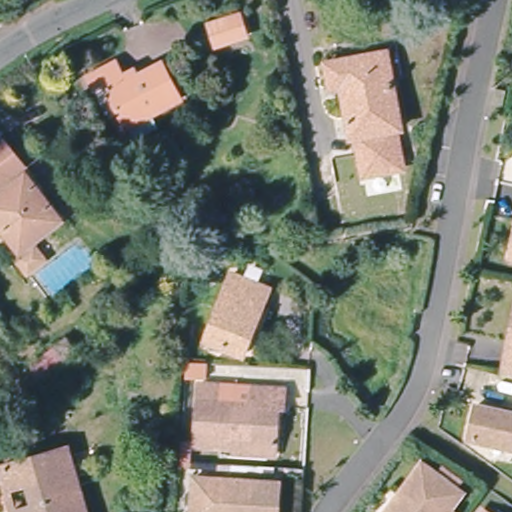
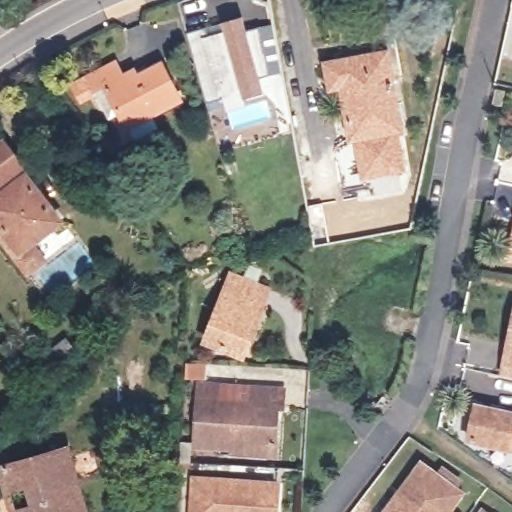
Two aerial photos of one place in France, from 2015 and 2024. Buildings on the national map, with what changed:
demolished [(209,23),(240,12),(247,34),(217,44),(209,23)]
new [(207,35),(225,33),(222,22),(243,17),(246,30),(259,28),(268,73),(260,75),(264,91),(244,96),(242,89),(207,100),(188,34),(205,29),(207,35)]
unchanged [(386,50),(389,65),(402,126),(399,127),(353,135),(342,84),(332,85),(327,61),(367,54),(386,50)]
unchanged [(94,90),(86,75),(116,59),(124,74),(136,68),(139,74),(163,61),(182,97),(129,125),(121,111),(111,117),(96,89),(94,90)]
unchanged [(399,127),(407,172),(361,181),(353,135),(399,127)]
unchanged [(23,160),(0,178),(0,138),(4,135),(23,160)]
unchanged [(14,248),(3,235),(10,229),(0,216),(0,189),(26,169),(60,214),(32,234),(47,254),(29,267),(14,248)]
unchanged [(509,256),(512,245),(512,256),(509,256)]
unchanged [(205,338),(231,272),(268,287),(242,353),(205,338)]
unchanged [(512,355),(512,372),(509,372),(511,358),(512,355)]
unchanged [(236,448),(236,441),(200,439),(202,378),(222,379),(222,396),(255,397),(256,380),(289,382),(288,401),(281,401),(280,437),(280,450),(236,448)]
unchanged [(512,411),(512,445),(472,437),(478,404),(512,411)]
unchanged [(5,489),(0,471),(0,466),(66,447),(87,512),(12,512),(5,489)]
unchanged [(417,469),(455,497),(444,512),(385,512),(417,469)]
unchanged [(198,476),(278,481),(277,512),(196,512),(198,476)]
unchanged [(486,512),(481,512),(482,509),(486,512)]

